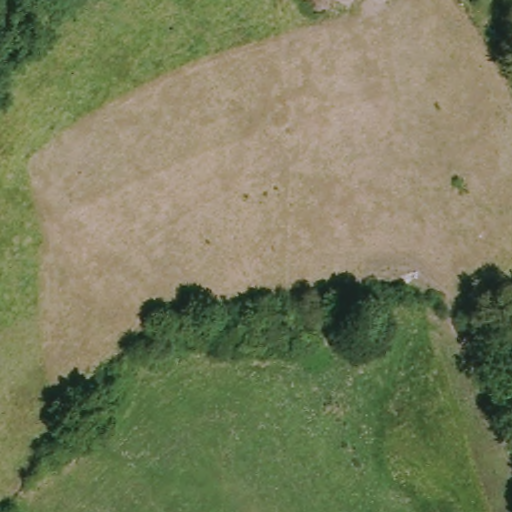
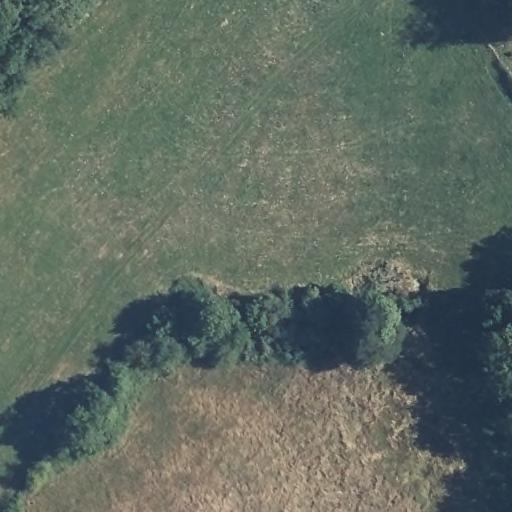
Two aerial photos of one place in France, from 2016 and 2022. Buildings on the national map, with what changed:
[]

